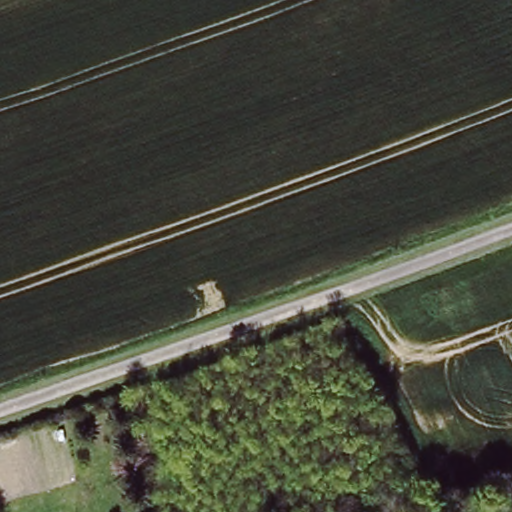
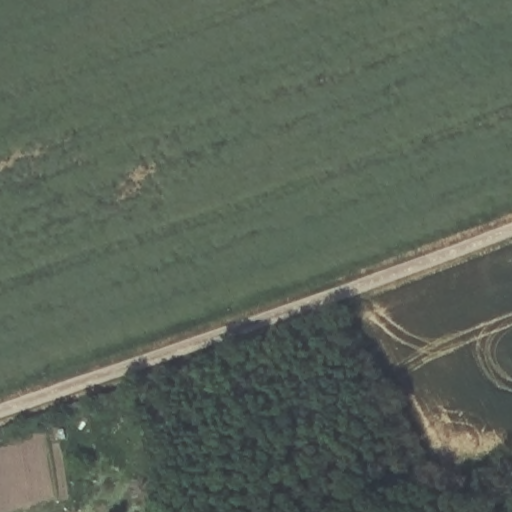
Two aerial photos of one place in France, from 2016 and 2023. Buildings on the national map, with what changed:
[]

